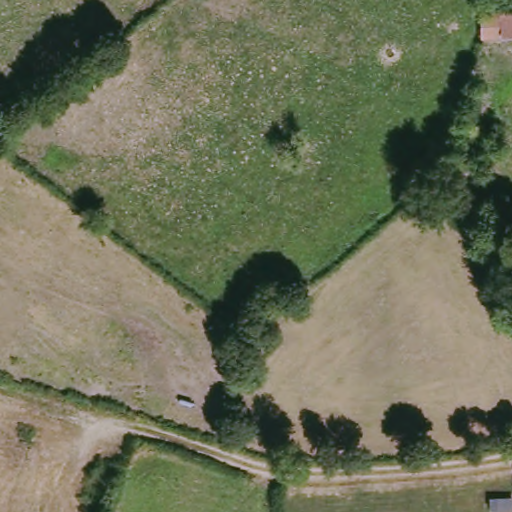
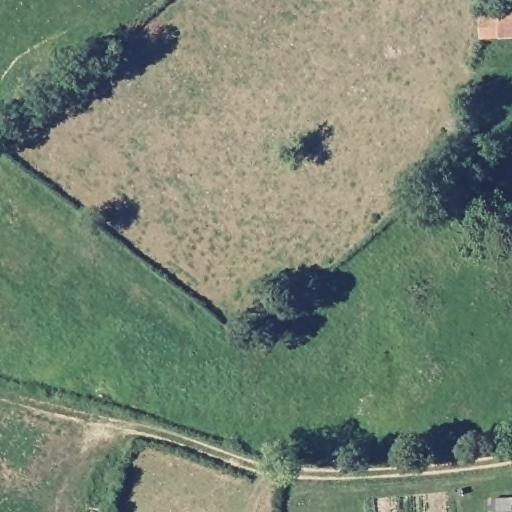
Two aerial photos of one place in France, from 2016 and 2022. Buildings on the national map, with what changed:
unchanged [(512,37),(485,39),(482,18),(512,15),(512,37)]

